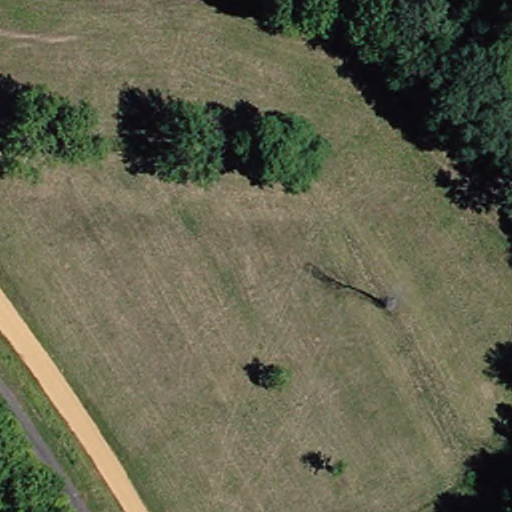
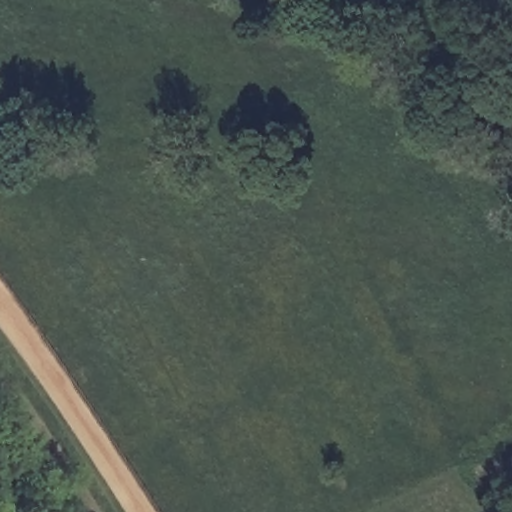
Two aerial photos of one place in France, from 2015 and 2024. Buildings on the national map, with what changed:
[]

